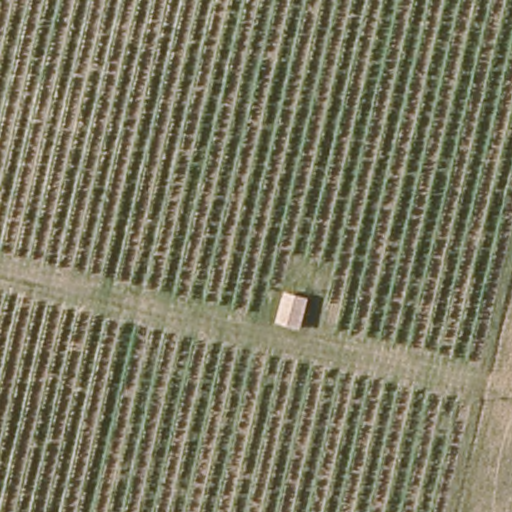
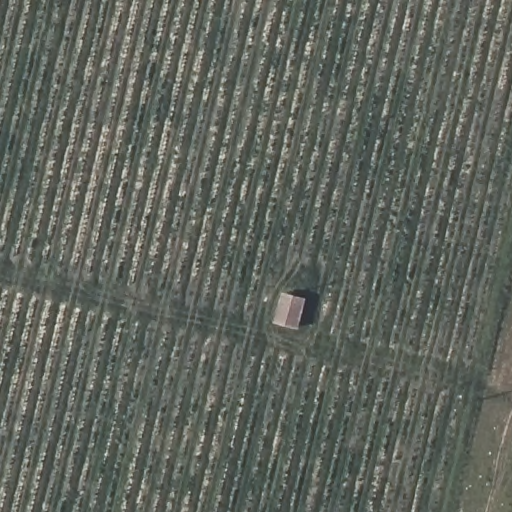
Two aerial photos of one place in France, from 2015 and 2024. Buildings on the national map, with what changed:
unchanged [(274,324),(281,295),(308,297),(302,329),(274,324)]

